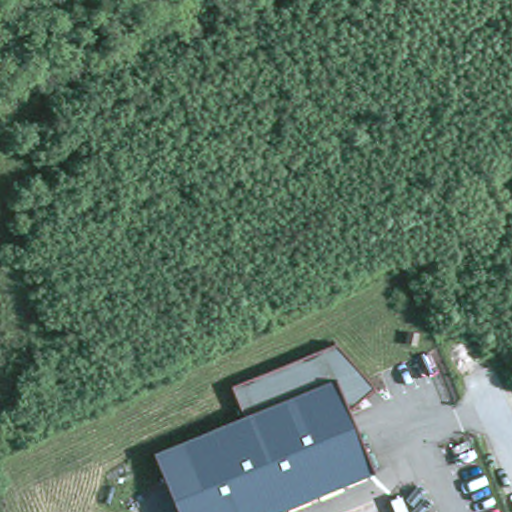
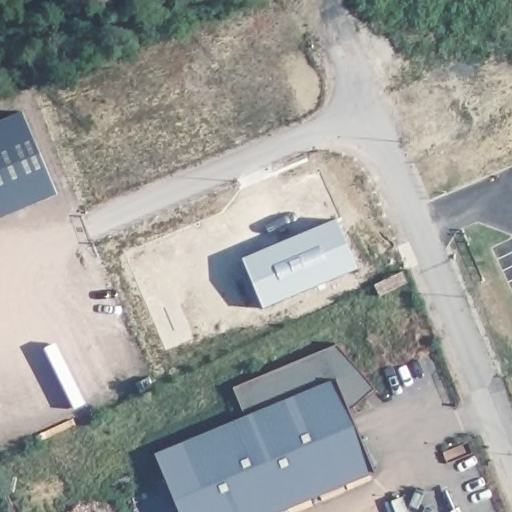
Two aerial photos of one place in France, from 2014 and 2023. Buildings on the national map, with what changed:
new [(24,113),(59,196),(0,222),(0,124),(24,113)]
new [(337,219),(359,268),(265,309),(244,260),(337,219)]
unchanged [(235,387),(335,346),(373,386),(347,409),(370,469),(266,512),(179,512),(155,455),(247,414),(235,387)]

